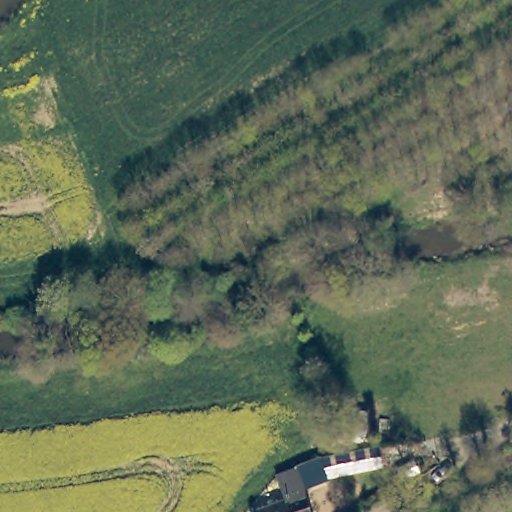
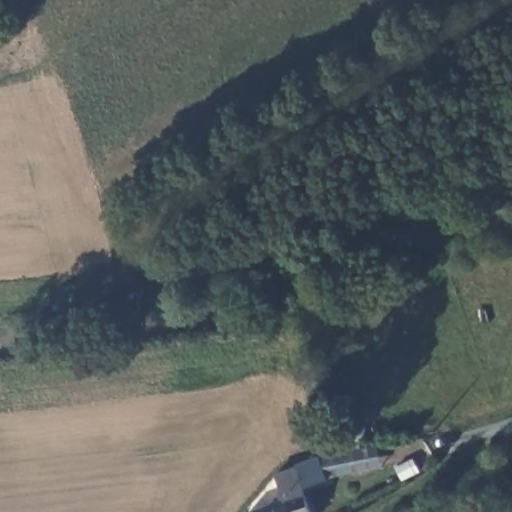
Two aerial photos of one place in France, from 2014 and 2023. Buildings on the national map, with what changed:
unchanged [(291,472),(315,463),(322,482),(298,492),(290,472),(291,472)]
unchanged [(297,493),(304,512),(245,512),(297,493)]

